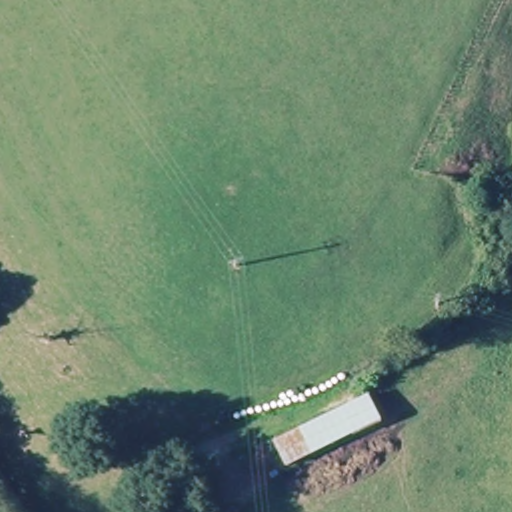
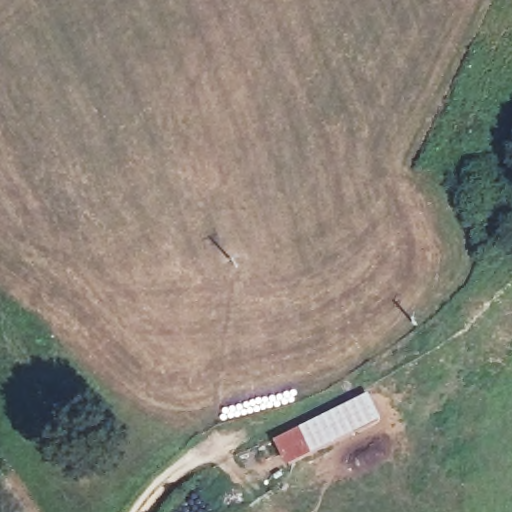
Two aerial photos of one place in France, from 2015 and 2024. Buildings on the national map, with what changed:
unchanged [(271,445),(366,396),(377,423),(285,471),(271,445)]

